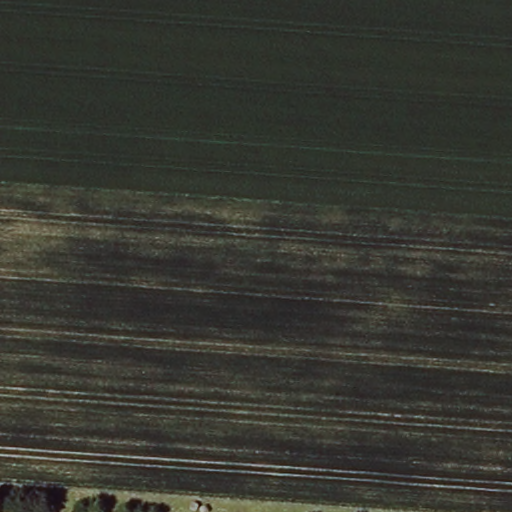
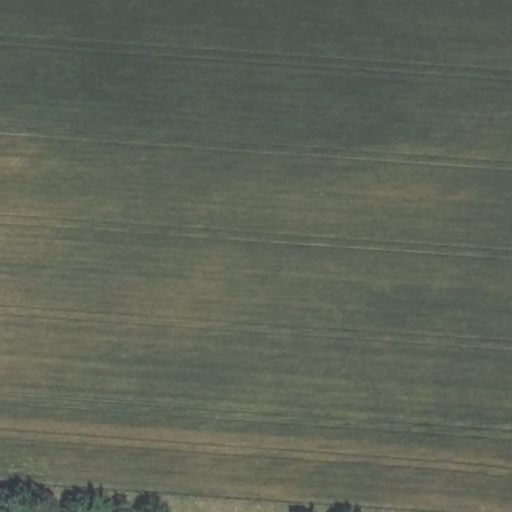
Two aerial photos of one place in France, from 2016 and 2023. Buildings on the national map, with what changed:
[]

